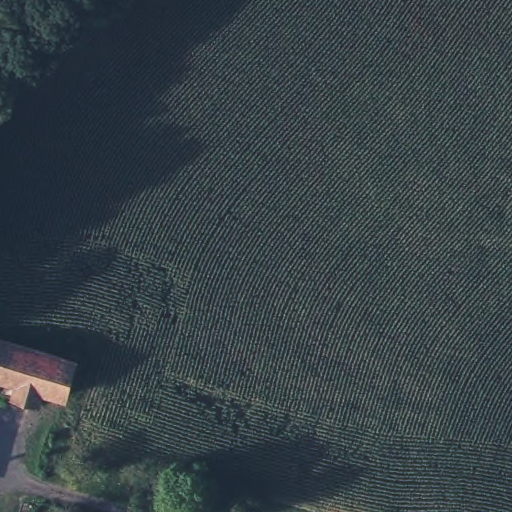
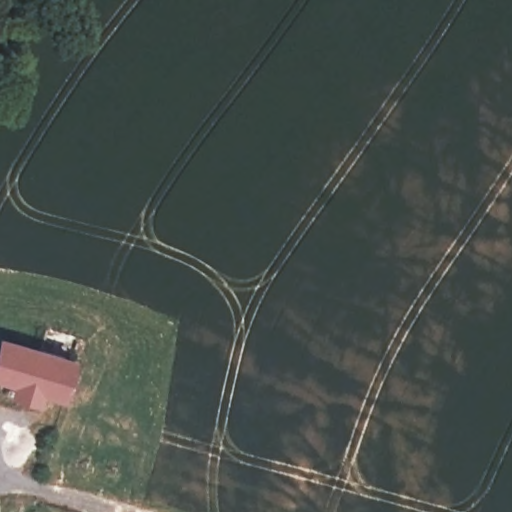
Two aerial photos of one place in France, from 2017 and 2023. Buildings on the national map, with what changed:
unchanged [(0,373),(0,334),(8,336),(0,373)]
unchanged [(16,392),(21,377),(0,373),(8,336),(78,356),(70,393),(46,387),(43,398),(16,392)]

